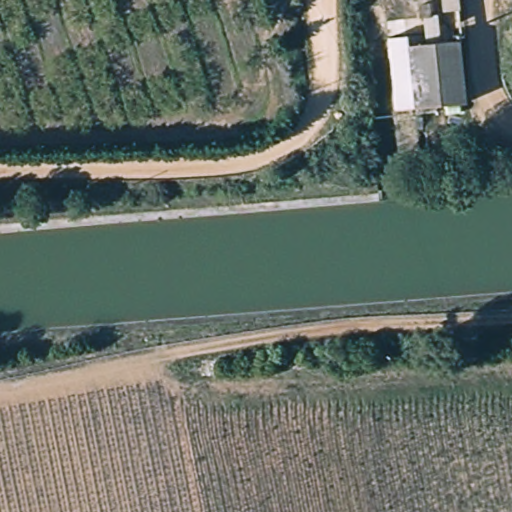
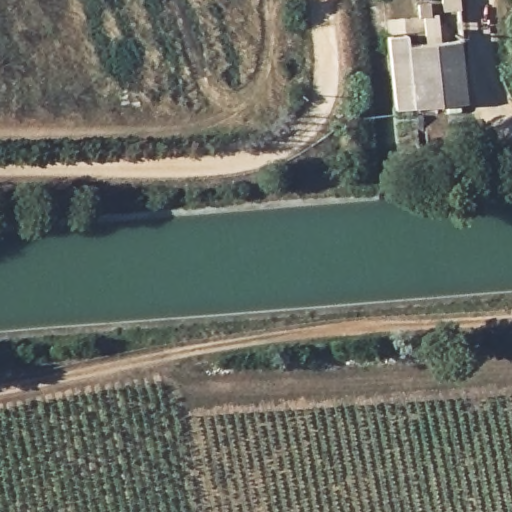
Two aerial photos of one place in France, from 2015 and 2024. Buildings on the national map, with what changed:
unchanged [(441,22),(439,0),(454,0),(456,21),(441,22)]
unchanged [(432,27),(438,27),(441,53),(459,52),(464,111),(415,116),(410,55),(425,54),(425,29),(418,29),(417,16),(431,16),(432,27)]

